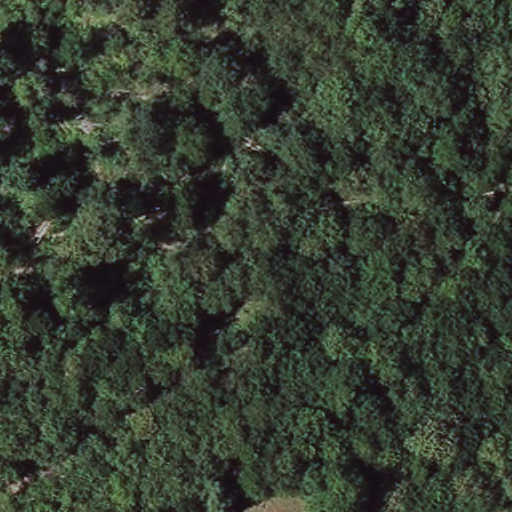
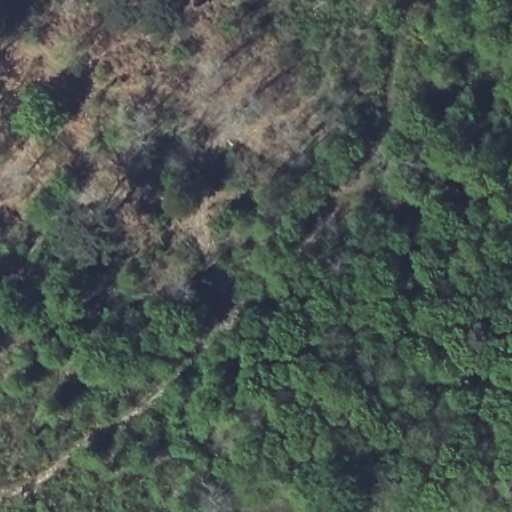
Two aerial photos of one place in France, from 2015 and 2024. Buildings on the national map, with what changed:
[]

